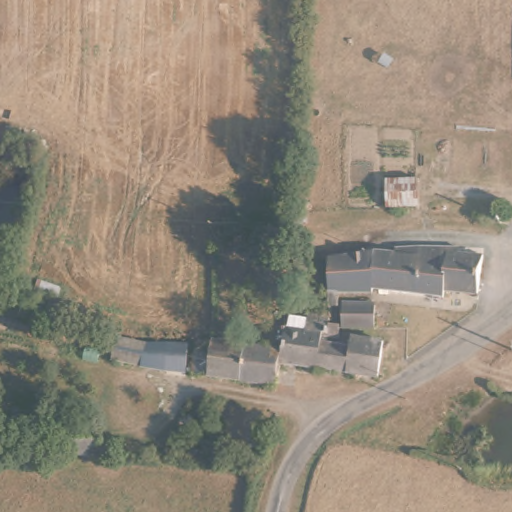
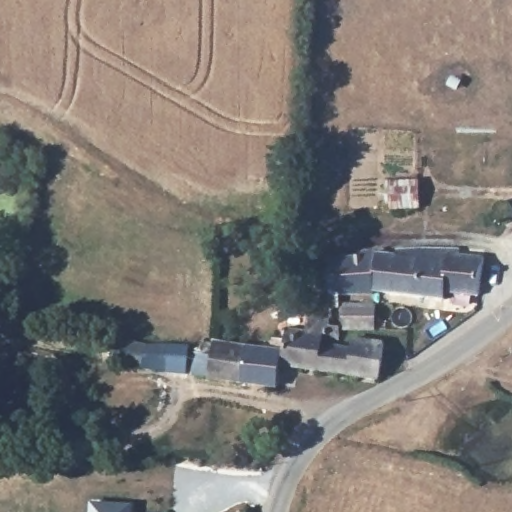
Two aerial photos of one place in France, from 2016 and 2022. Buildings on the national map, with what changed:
unchanged [(416,181),(416,212),(389,212),(389,181),(416,181)]
unchanged [(416,253),(416,296),(376,294),(368,300),(340,297),(339,308),(327,308),(324,261),(416,253)]
unchanged [(456,254),(482,255),(481,290),(430,287),(429,297),(416,296),(416,253),(456,254)]
unchanged [(379,332),(347,330),(349,308),(379,310),(379,332)]
unchanged [(326,329),(347,330),(347,340),(329,339),(328,347),(358,347),(366,341),(387,343),(384,381),(299,373),(287,372),(290,356),(288,337),(307,336),(307,317),(327,317),(326,329)]
unchanged [(175,355),(176,347),(192,350),(191,355),(189,377),(120,372),(121,367),(111,366),(113,341),(148,346),(147,352),(175,355)]
unchanged [(290,356),(287,372),(282,392),(198,383),(200,356),(201,347),(217,349),(290,356)]
unchanged [(104,436),(100,462),(57,460),(61,432),(104,436)]
new [(133,503),(132,512),(88,512),(89,500),(133,503)]

